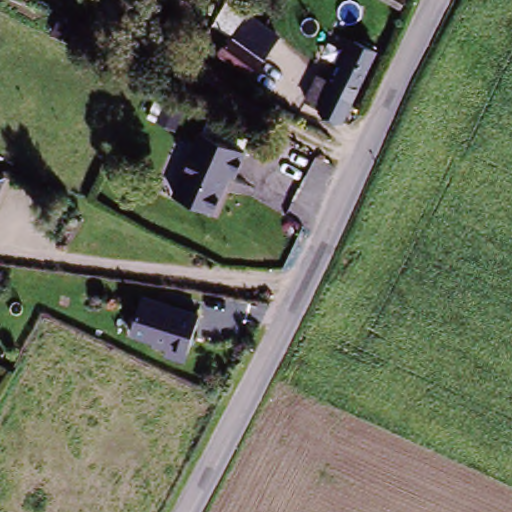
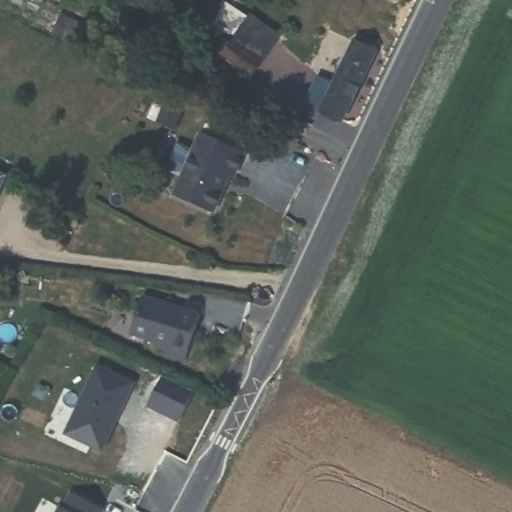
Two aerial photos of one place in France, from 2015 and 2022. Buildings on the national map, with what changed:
unchanged [(417,14),(395,0),(424,0),(426,2),(417,14)]
unchanged [(208,55),(227,32),(260,60),(243,83),(208,55)]
unchanged [(317,115),(319,111),(301,102),(315,74),(333,82),(335,77),(355,40),(375,50),(356,88),(338,126),(317,115)]
unchanged [(190,116),(190,117),(183,131),(165,124),(172,109),(172,108),(190,116)]
unchanged [(247,153),(237,176),(235,175),(232,181),(230,180),(226,187),(227,192),(221,205),(218,206),(181,190),(205,135),(247,153)]
unchanged [(0,176),(8,180),(0,199),(0,176)]
unchanged [(143,302),(201,318),(188,365),(167,360),(170,352),(155,348),(156,346),(132,339),(143,302)]
unchanged [(16,327),(10,341),(0,336),(0,321),(1,319),(16,327)]
new [(137,382),(103,452),(65,435),(95,366),(137,382)]
new [(106,512),(57,512),(60,506),(72,491),(107,511),(106,512)]

